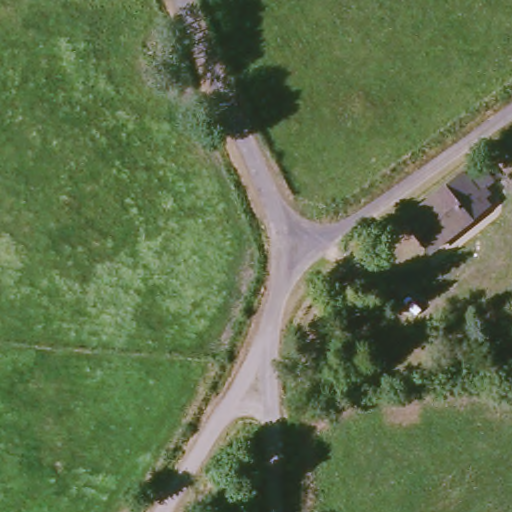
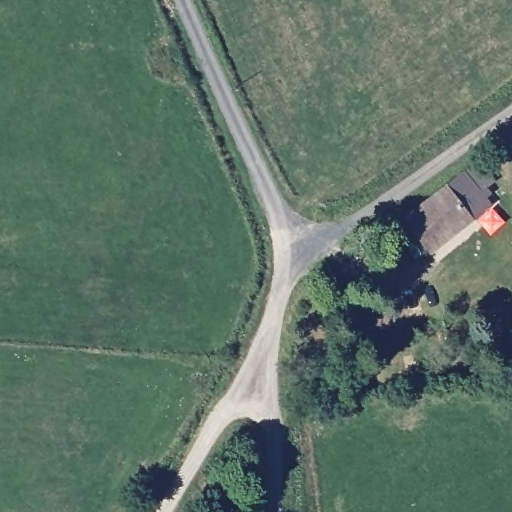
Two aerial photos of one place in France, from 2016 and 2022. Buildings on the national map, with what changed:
unchanged [(435,250),(408,217),(481,160),(497,179),(488,186),(494,193),(490,196),(495,203),(435,250)]

